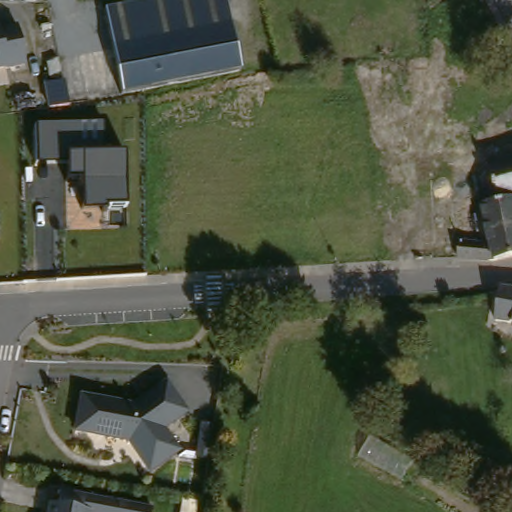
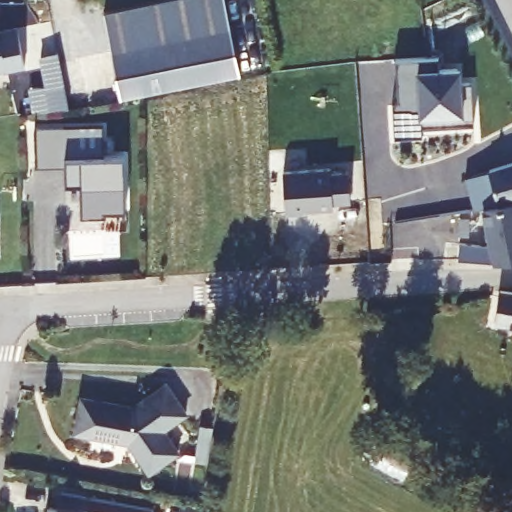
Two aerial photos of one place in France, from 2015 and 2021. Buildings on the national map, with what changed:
unchanged [(109,11),(163,0),(230,0),(247,79),(123,101),(109,11)]
unchanged [(25,64),(0,68),(0,30),(19,27),(25,64)]
new [(440,55),(440,67),(461,65),(462,81),(473,80),(475,122),(422,126),(423,133),(394,135),(392,99),(397,98),(395,57),(440,55)]
unchanged [(36,125),(101,123),(102,155),(124,154),(124,207),(105,207),(105,210),(82,210),(81,178),(67,178),(67,163),(36,164),(36,125)]
unchanged [(490,262),(480,205),(492,203),(485,168),(512,162),(512,258),(490,262)]
new [(326,167),(326,172),(343,171),(346,201),(328,202),(328,207),(298,209),(298,211),(281,213),(278,170),(326,167)]
unchanged [(512,292),(512,326),(493,323),(501,290),(512,292)]
unchanged [(137,407),(170,384),(190,413),(166,429),(181,452),(152,471),(132,441),(80,431),(86,397),(137,407)]
unchanged [(62,505),(65,489),(89,494),(156,507),(155,512),(52,512),(54,503),(62,505)]

